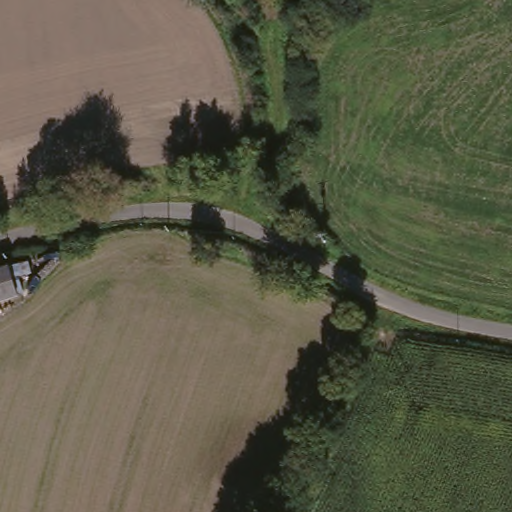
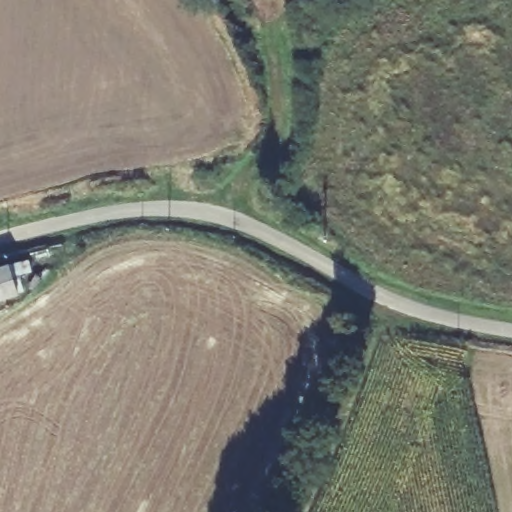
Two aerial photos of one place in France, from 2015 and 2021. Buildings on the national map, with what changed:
unchanged [(0,272),(6,270),(13,301),(0,304),(0,272)]

